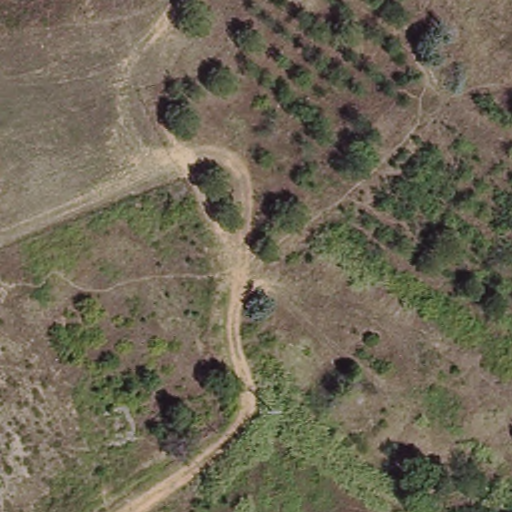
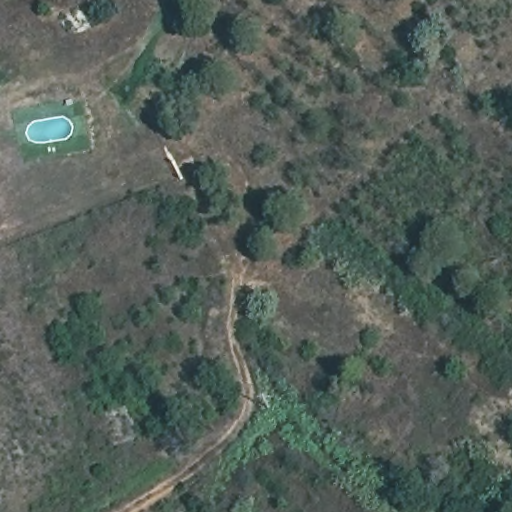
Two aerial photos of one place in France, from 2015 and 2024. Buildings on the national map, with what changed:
[]

